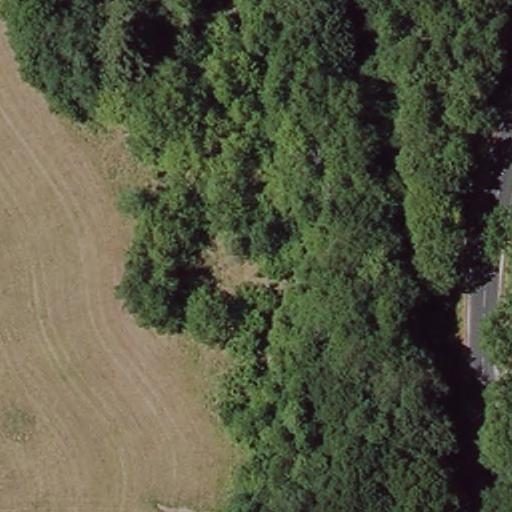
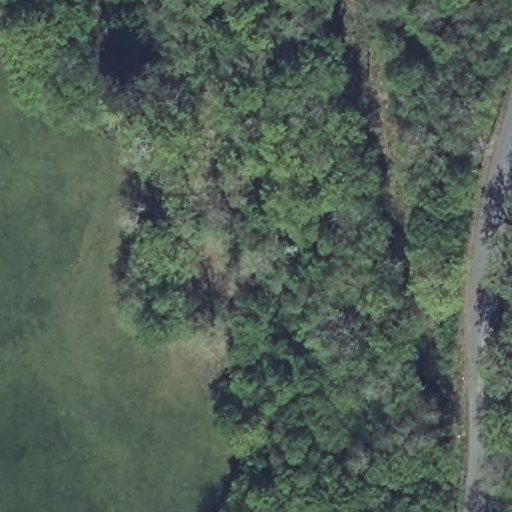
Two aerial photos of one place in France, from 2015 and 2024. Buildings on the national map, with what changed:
[]

